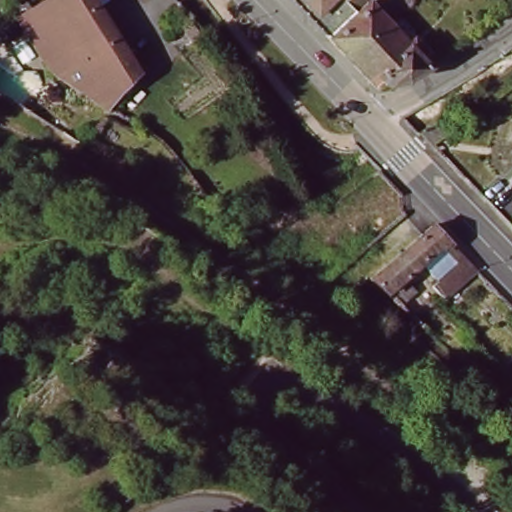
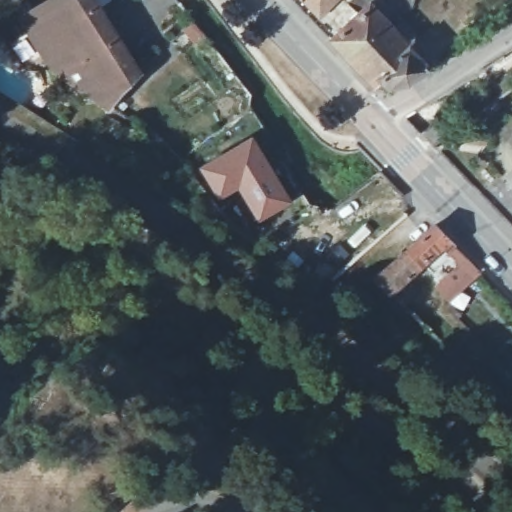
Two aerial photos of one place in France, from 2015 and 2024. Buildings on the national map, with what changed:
unchanged [(133,57),(143,75),(113,108),(110,112),(54,71),(44,55),(33,39),(20,17),(16,7),(23,2),(30,12),(50,0),(96,0),(133,57)]
unchanged [(331,32),(302,0),(405,0),(384,22),(364,1),(331,32)]
unchanged [(404,42),(409,38),(421,50),(416,55),(427,67),(405,82),(383,83),(378,77),(369,82),(326,37),(331,32),(364,1),(384,22),(404,42)]
unchanged [(444,115),(452,127),(431,141),(421,131),(444,115)]
new [(256,135),(296,202),(260,223),(241,190),(220,202),(201,167),(256,135)]
unchanged [(433,226),(443,237),(451,244),(444,251),(457,265),(436,283),(419,267),(422,264),(408,249),(433,226)]
unchanged [(479,273),(449,300),(436,283),(457,265),(444,251),(451,244),(479,273)]
unchanged [(371,282),(386,268),(408,249),(422,264),(419,267),(392,292),(410,308),(406,313),(371,282)]

